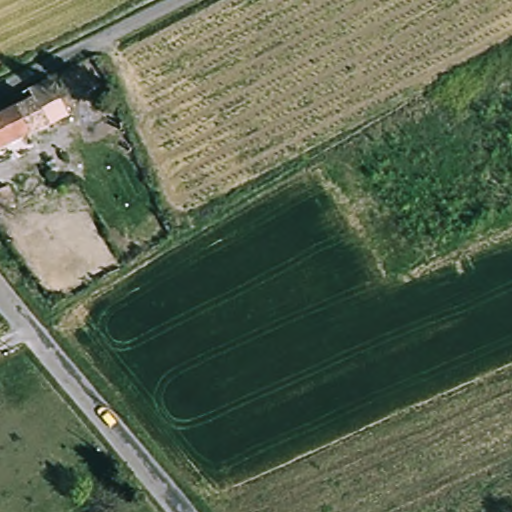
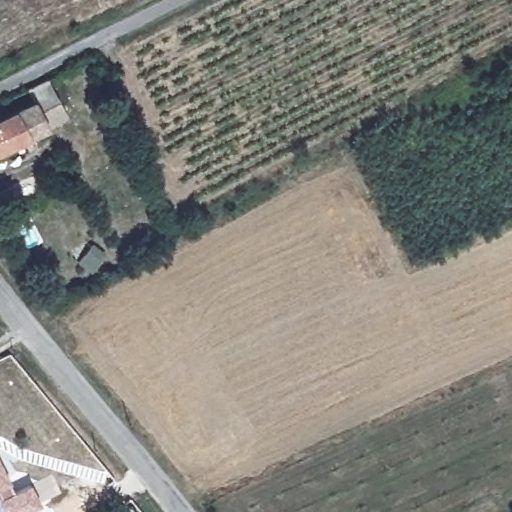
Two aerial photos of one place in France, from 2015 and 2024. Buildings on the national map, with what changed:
unchanged [(35,101),(9,113),(3,100),(53,78),(54,78),(73,120),(49,131),(47,128),(35,101)]
unchanged [(35,101),(47,128),(0,149),(0,117),(9,113),(35,101)]
unchanged [(16,212),(2,218),(0,219),(0,194),(7,191),(16,212)]
new [(28,484),(38,502),(19,512),(6,512),(0,501),(0,468),(12,492),(28,484)]

